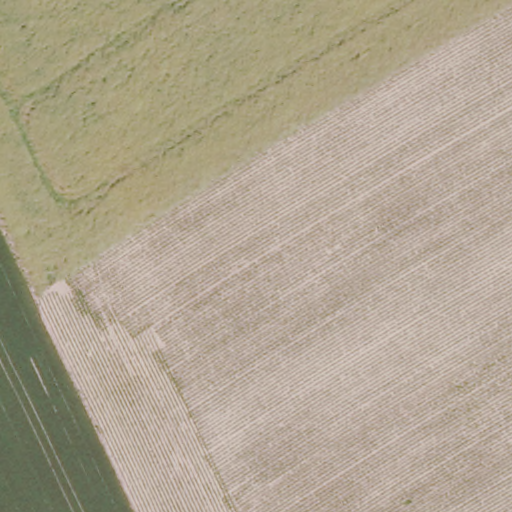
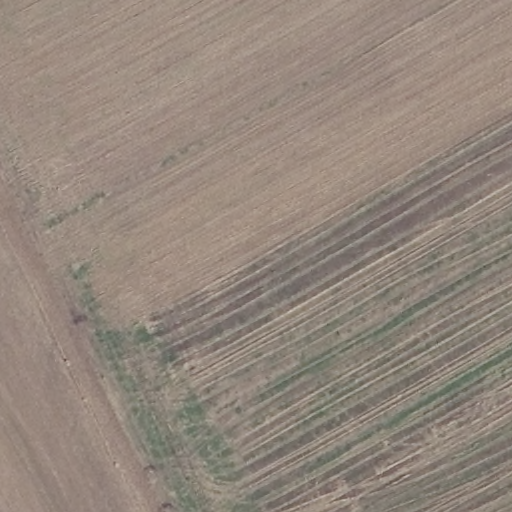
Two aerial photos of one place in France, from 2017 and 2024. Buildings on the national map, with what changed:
[]

